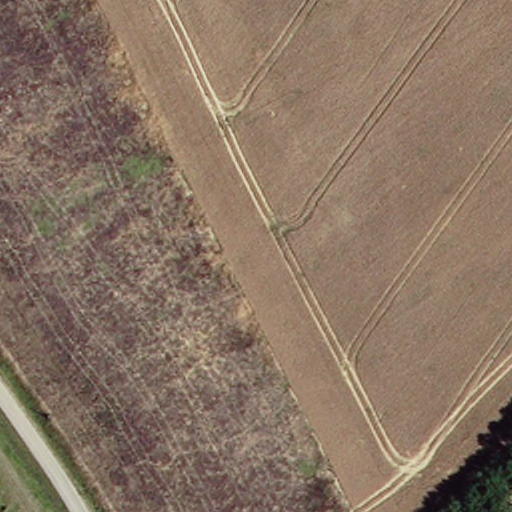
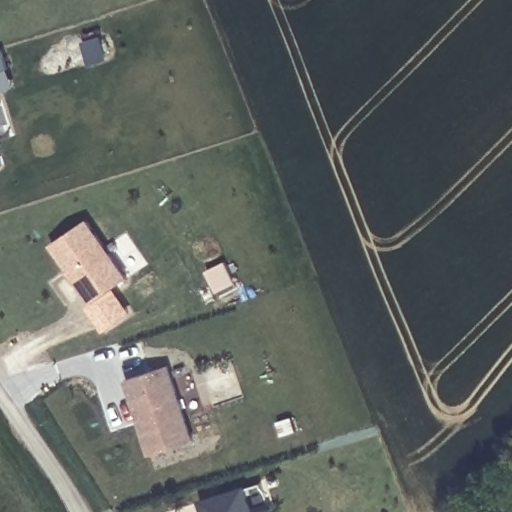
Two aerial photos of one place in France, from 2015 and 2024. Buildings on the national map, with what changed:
new [(0,88),(0,58),(3,71),(8,86),(0,88)]
new [(87,218),(128,277),(90,302),(49,245),(87,218)]
new [(193,442),(149,455),(125,379),(169,365),(193,442)]
new [(204,512),(201,503),(242,491),(249,512),(204,512)]

